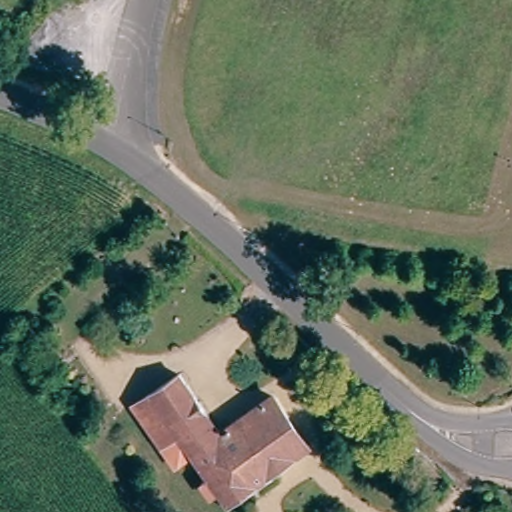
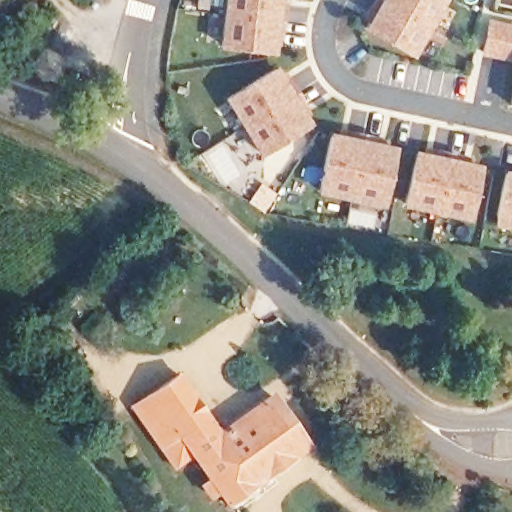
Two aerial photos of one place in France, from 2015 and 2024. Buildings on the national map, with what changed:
new [(286,7),(284,21),(228,16),(229,0),(287,0),(286,7)]
new [(449,1),(434,29),(383,1),(384,0),(448,0),(449,1)]
new [(373,20),(377,14),(383,1),(434,29),(418,58),(374,32),(378,23),(373,20)]
new [(276,43),(275,52),(224,47),(228,16),(284,21),(283,36),(282,44),(276,43)]
new [(499,28),(512,30),(512,61),(487,56),(490,41),(493,26),(499,28)]
new [(276,81),(282,78),(286,84),(293,97),(245,127),(228,100),(271,73),(276,81)]
new [(301,109),(305,116),(300,119),(305,127),(262,154),(245,127),(293,97),(301,109)]
new [(342,142),(344,136),(351,138),(366,141),(354,197),(323,190),(333,140),(342,142)]
new [(380,144),(388,145),(386,151),(396,153),(385,203),(354,197),(366,141),(380,144)]
new [(428,156),(429,150),(437,152),(451,155),(440,212),(408,205),(419,154),(428,156)]
new [(466,158),(473,160),(472,166),(481,168),(472,219),(440,212),(451,155),(466,158)]
new [(512,229),(497,226),(507,175),(512,176),(512,229)]
unchanged [(282,401),(316,451),(236,502),(202,452),(182,464),(139,402),(185,375),(225,434),(282,401)]

